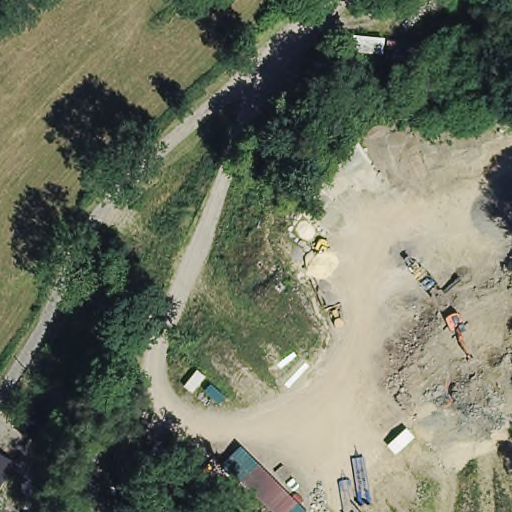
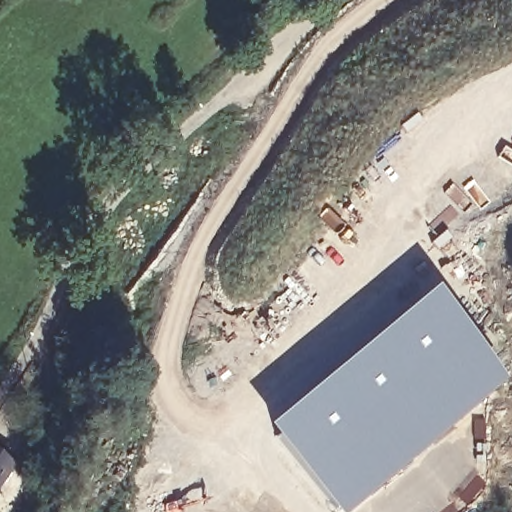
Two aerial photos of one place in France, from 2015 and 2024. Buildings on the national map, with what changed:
new [(433,287),(501,373),(350,512),(339,512),(265,428),(433,287)]
unchanged [(16,468),(1,490),(0,489),(0,456),(16,468)]

